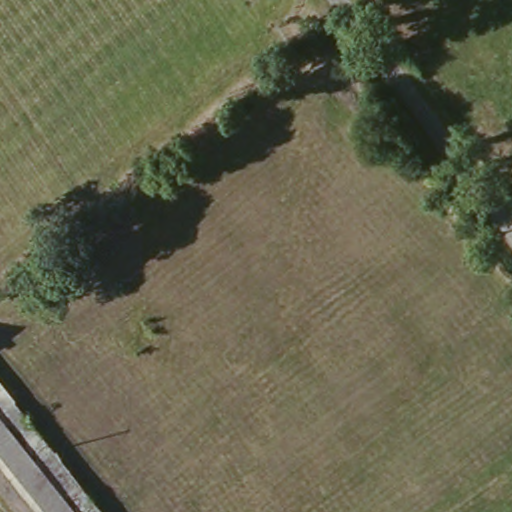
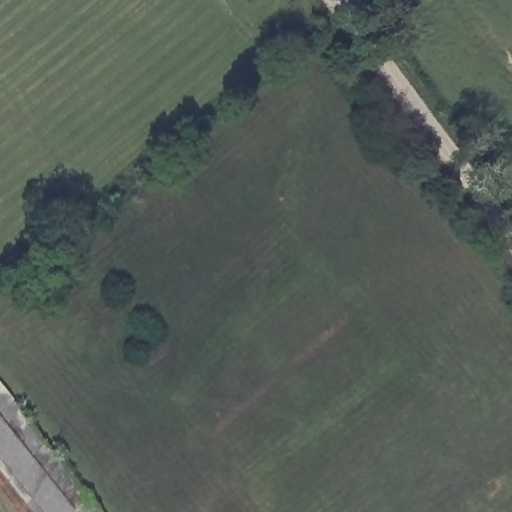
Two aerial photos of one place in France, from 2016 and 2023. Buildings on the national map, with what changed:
unchanged [(42,472),(0,419),(0,385),(100,512),(73,512),(42,472)]
unchanged [(0,462),(0,419),(42,472),(21,489),(0,462)]

